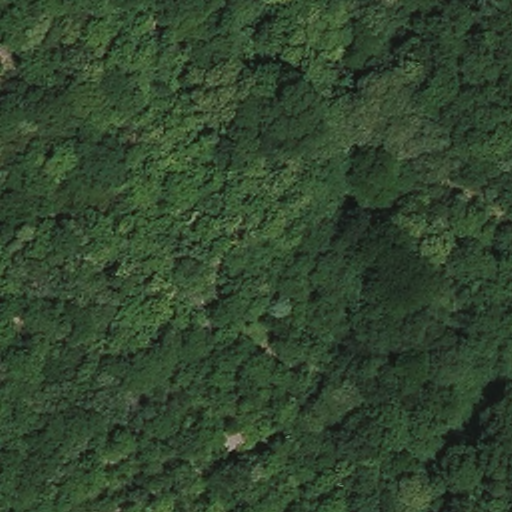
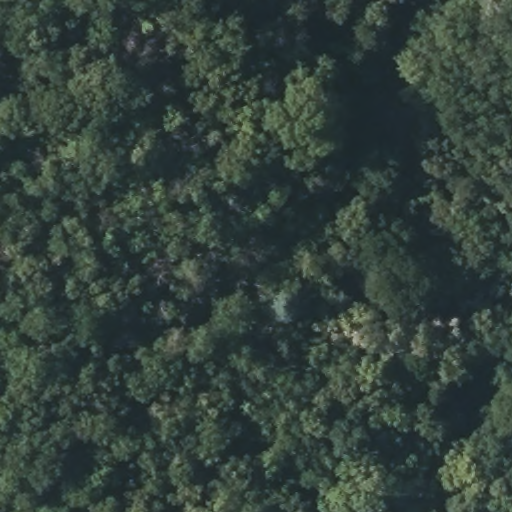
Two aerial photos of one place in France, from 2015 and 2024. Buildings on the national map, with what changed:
unchanged [(254,434),(222,451),(218,433),(240,421),(254,434)]

